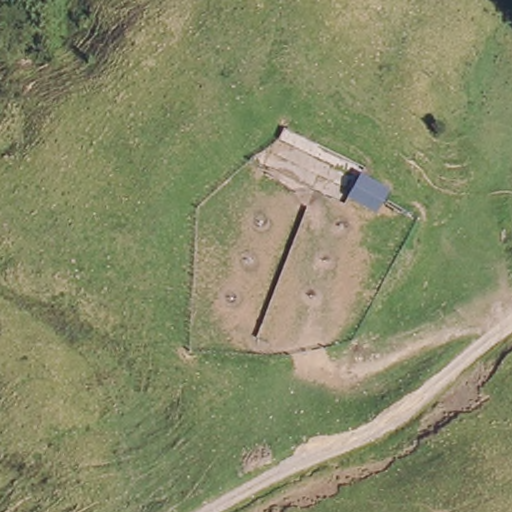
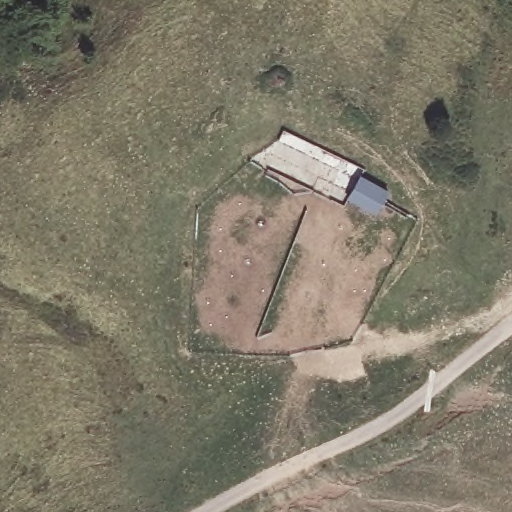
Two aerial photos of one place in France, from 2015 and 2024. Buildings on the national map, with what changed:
unchanged [(359,173),(389,187),(379,210),(350,194),(359,173)]

